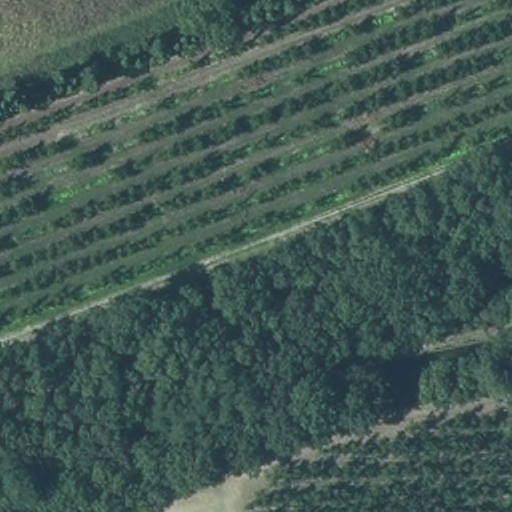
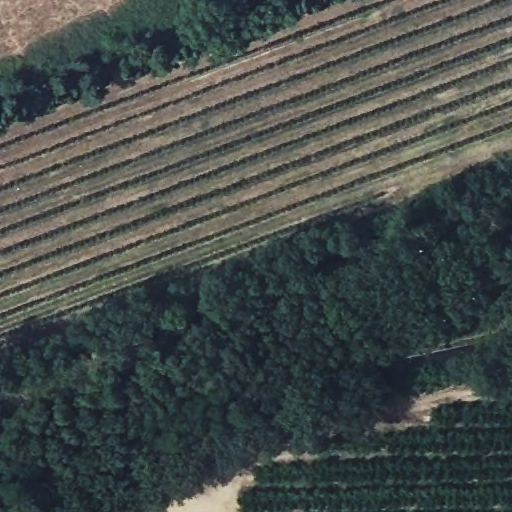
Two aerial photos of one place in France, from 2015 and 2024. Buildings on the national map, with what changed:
[]

